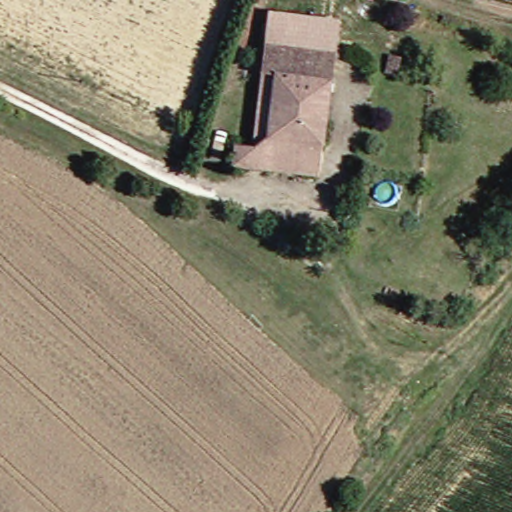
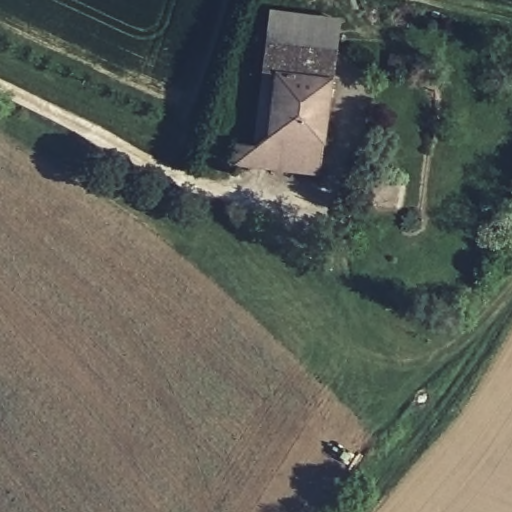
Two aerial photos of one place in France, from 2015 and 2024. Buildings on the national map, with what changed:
unchanged [(274,130),(282,67),(251,66),(261,6),(356,19),(353,47),(342,47),(328,140),(274,130)]
unchanged [(322,172),(237,157),(251,66),(282,67),(274,130),(328,140),(322,172)]

